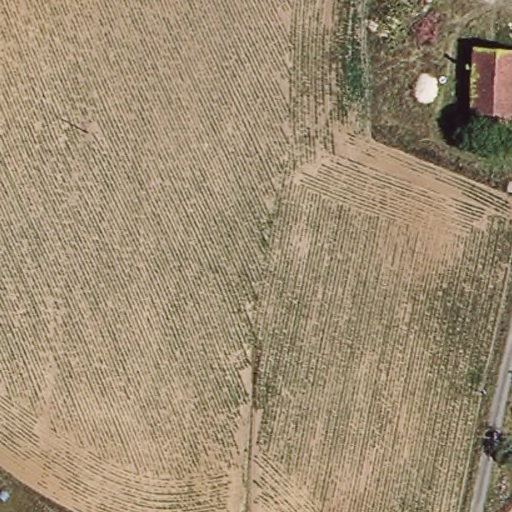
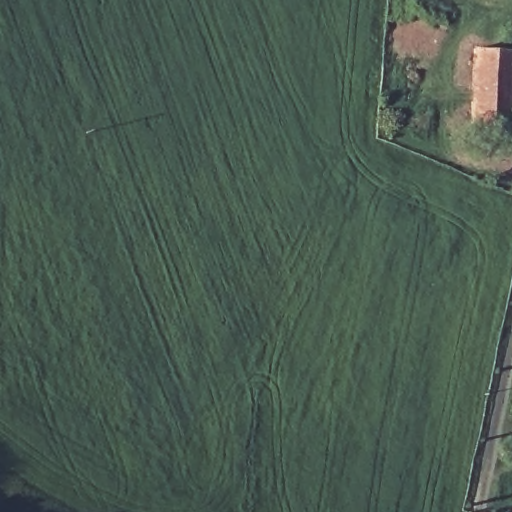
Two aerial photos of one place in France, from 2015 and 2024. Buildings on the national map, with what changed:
unchanged [(506,52),(512,52),(512,82),(508,135),(468,131),(475,49),(506,52)]
unchanged [(512,82),(512,135),(508,135),(512,82)]

